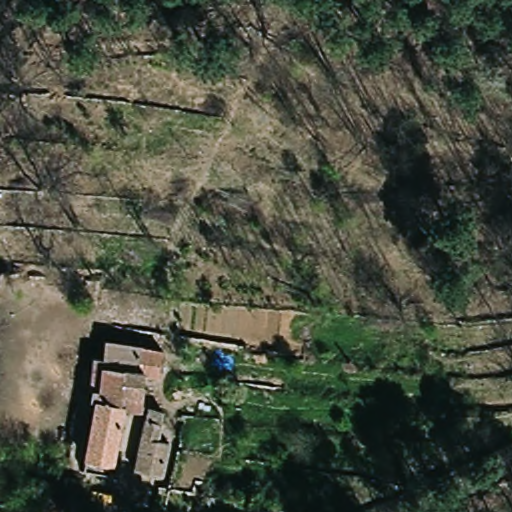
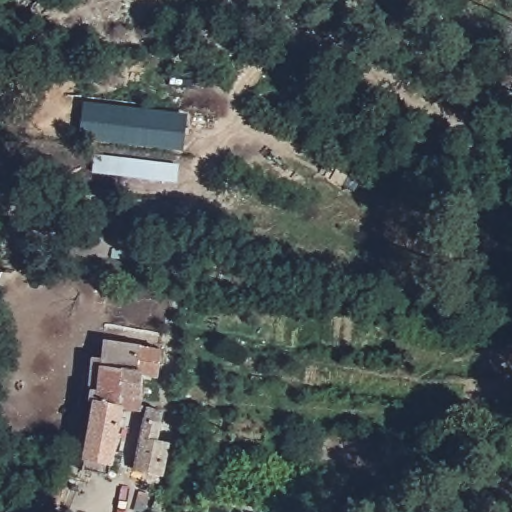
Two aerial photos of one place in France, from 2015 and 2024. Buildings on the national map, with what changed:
new [(81,137),(84,100),(188,113),(183,150),(81,137)]
new [(93,173),(95,156),(178,165),(177,184),(93,173)]
unchanged [(78,465),(80,453),(89,403),(86,403),(88,390),(94,389),(98,339),(155,343),(150,374),(146,373),(140,406),(153,408),(147,441),(158,443),(154,465),(118,459),(116,471),(78,465)]

